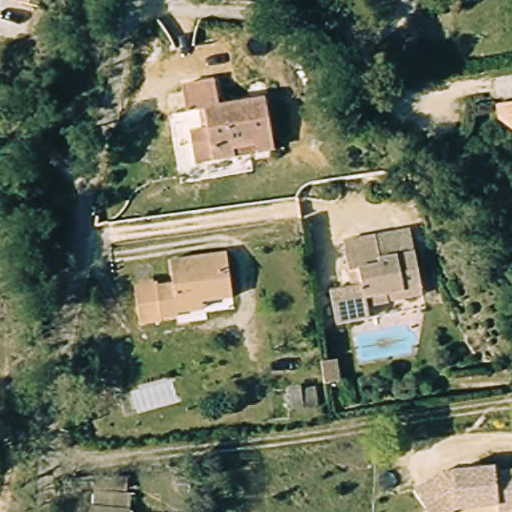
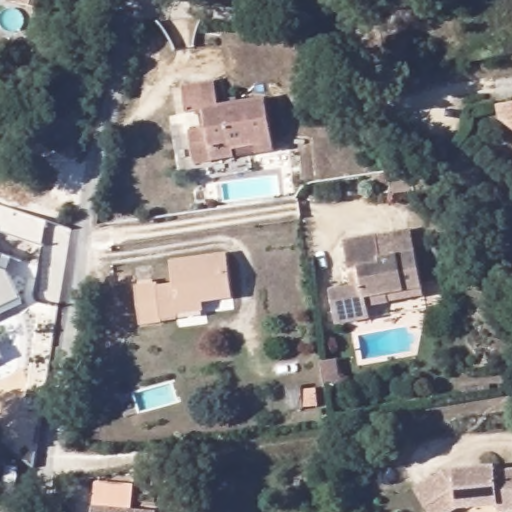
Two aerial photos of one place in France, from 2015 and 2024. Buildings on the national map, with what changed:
unchanged [(16,6),(18,0),(47,0),(45,12),(16,6)]
unchanged [(196,139),(191,119),(186,94),(181,72),(212,65),(217,85),(223,110),(267,100),(280,152),(265,156),(243,161),(222,167),(203,171),(200,158),(196,139)]
unchanged [(512,104),(512,120),(510,118),(508,105),(512,104)]
unchanged [(332,296),(362,291),(360,273),(347,275),(343,246),(378,241),(414,235),(423,293),(386,300),(387,306),(365,310),(367,323),(337,328),(332,296)]
new [(11,258),(6,270),(23,305),(0,315),(0,255),(11,258)]
unchanged [(179,315),(180,318),(161,320),(155,287),(175,284),(173,261),(228,255),(232,298),(206,301),(207,312),(179,315)]
unchanged [(301,385),(302,389),(318,386),(320,407),(289,411),(287,387),(301,385)]
unchanged [(497,466),(497,471),(512,470),(512,511),(501,512),(500,504),(459,508),(453,512),(431,512),(416,488),(443,472),(497,466)]
unchanged [(100,509),(121,512),(99,512),(100,509)]

